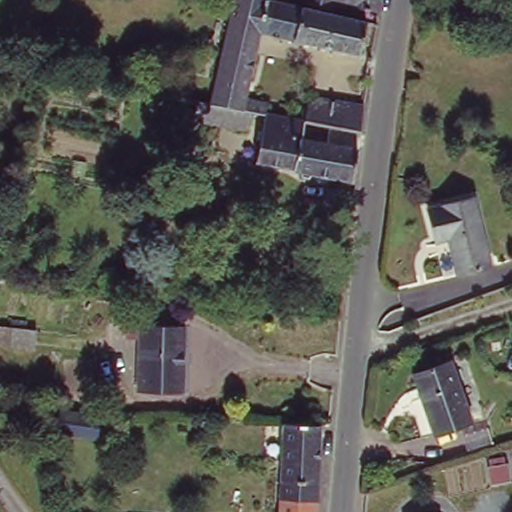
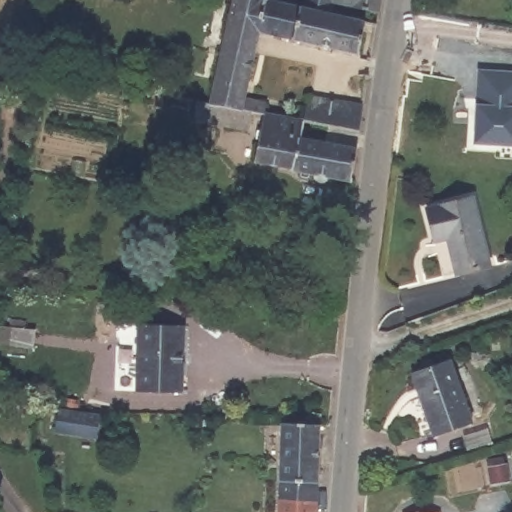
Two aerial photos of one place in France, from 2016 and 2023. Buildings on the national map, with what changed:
unchanged [(261,28),(246,95),(269,99),(267,111),(264,110),(250,108),(211,101),(233,0),(286,0),(303,4),(367,19),(360,51),(261,28)]
unchanged [(306,0),(332,0),(331,6),(306,0)]
unchanged [(382,0),(379,10),(332,0),(382,0)]
new [(512,146),(473,143),(478,67),(512,69),(512,146)]
unchanged [(162,104),(152,102),(153,91),(164,93),(162,104)]
unchanged [(310,94),(363,104),(359,127),(306,117),(310,94)]
unchanged [(246,128),(194,118),(197,99),(211,101),(250,108),(246,128)]
unchanged [(313,172),(312,175),(311,177),(308,179),(306,179),(302,179),(300,176),(299,173),(299,170),(293,169),(293,166),(254,160),(264,110),(267,111),(306,117),(302,137),(356,146),(351,179),(313,172)]
unchanged [(489,262),(456,269),(448,234),(434,237),(426,203),(473,193),(489,262)]
unchanged [(0,339),(0,319),(24,324),(21,344),(0,339)]
unchanged [(144,390),(143,323),(184,322),(185,390),(144,390)]
unchanged [(431,431),(413,370),(451,359),(469,419),(431,431)]
demolished [(55,427),(58,407),(99,415),(96,434),(55,427)]
unchanged [(317,512),(278,512),(281,421),(281,419),(321,421),(321,422),(317,512)]
demolished [(207,431),(202,431),(203,424),(208,425),(207,431)]

